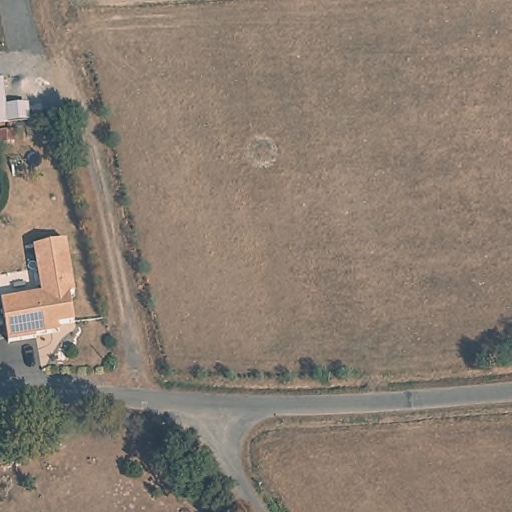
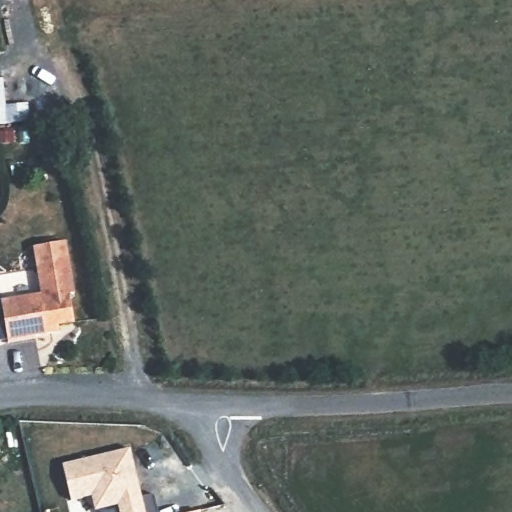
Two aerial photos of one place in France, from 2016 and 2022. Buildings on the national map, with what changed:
unchanged [(54,333),(38,335),(38,338),(10,342),(2,301),(43,293),(35,246),(67,240),(77,292),(71,293),(76,321),(60,324),(61,331),(54,333)]
new [(141,498),(154,495),(159,512),(120,512),(117,503),(96,509),(91,495),(70,501),(61,464),(131,448),(141,498)]

